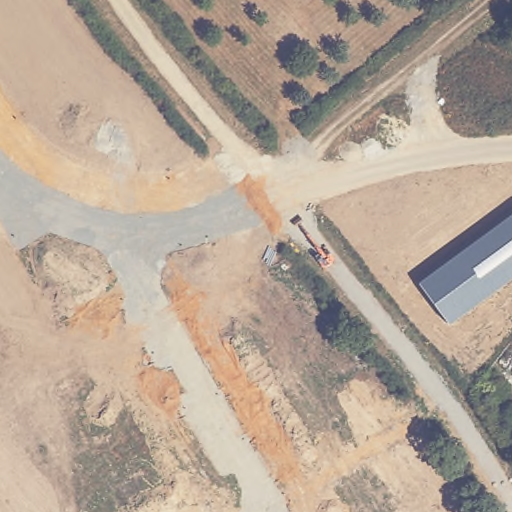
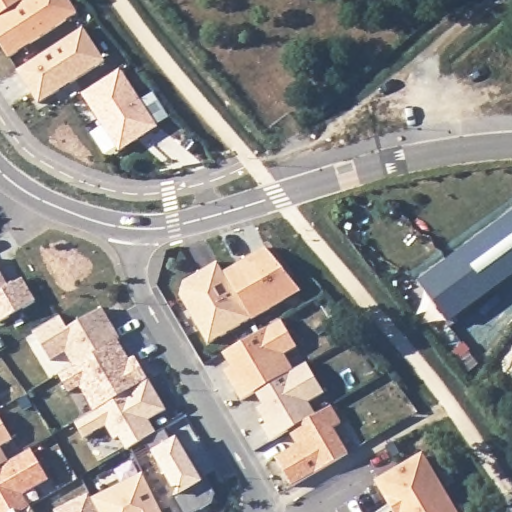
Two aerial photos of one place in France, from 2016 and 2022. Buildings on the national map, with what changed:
new [(0,0),(25,0),(0,16),(0,0)]
new [(0,17),(25,0),(48,0),(50,3),(54,0),(68,0),(77,14),(9,59),(0,45),(0,17)]
unchanged [(104,62),(40,104),(19,72),(84,30),(104,62)]
new [(121,69),(159,127),(120,152),(83,94),(121,69)]
unchanged [(451,326),(421,285),(512,217),(512,280),(451,326)]
new [(267,248),(302,291),(253,320),(252,319),(225,273),(267,248)]
new [(184,283),(219,262),(225,273),(252,319),(209,344),(181,296),(184,283)]
new [(24,277),(36,303),(0,323),(0,271),(9,287),(24,277)]
new [(60,316),(68,329),(102,308),(121,340),(118,341),(108,348),(75,367),(74,368),(65,353),(51,362),(33,332),(60,316)]
new [(282,320),(298,349),(286,356),(294,371),(307,364),(325,395),(309,405),(316,417),(290,431),(270,443),(262,428),(265,426),(258,409),(263,405),(257,395),(243,403),(224,372),(230,368),(223,355),(282,320)]
new [(75,367),(108,348),(118,341),(127,356),(121,359),(124,364),(136,358),(149,380),(96,412),(81,387),(70,393),(60,375),(75,367)]
new [(167,410),(145,423),(153,436),(129,451),(120,438),(116,441),(107,426),(85,439),(76,423),(149,380),(167,410)]
new [(290,431),(316,417),(332,407),(342,424),(334,428),(349,454),(294,487),(276,458),(298,445),(290,431)]
new [(2,448),(11,464),(0,470),(0,417),(14,441),(2,448)]
new [(164,429),(170,443),(176,439),(189,459),(194,456),(214,493),(212,504),(197,512),(180,512),(173,498),(179,495),(146,441),(153,436),(164,429)]
unchanged [(30,453),(49,482),(23,497),(29,509),(24,512),(0,512),(0,470),(9,465),(30,453)]
new [(394,500),(383,482),(429,455),(450,492),(461,512),(401,512),(394,500)]
new [(93,499),(144,473),(163,512),(99,512),(93,499)]
unchanged [(54,512),(87,495),(96,512),(54,512)]
new [(31,512),(24,512),(29,509),(31,512)]

